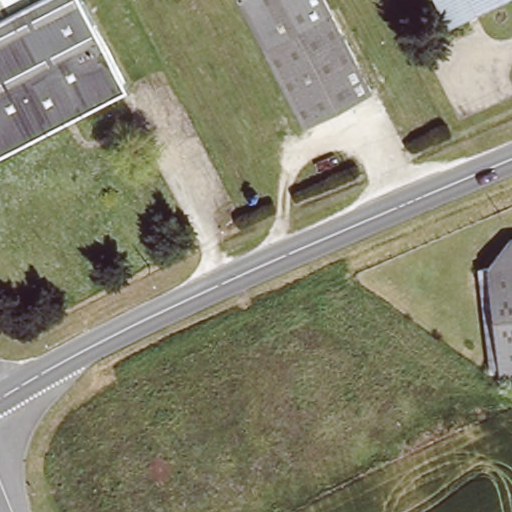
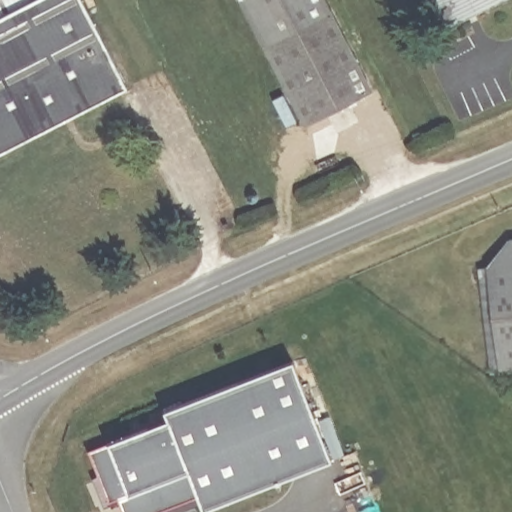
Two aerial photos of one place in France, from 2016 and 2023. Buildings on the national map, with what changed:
unchanged [(0,151),(0,0),(83,0),(127,88),(0,151)]
unchanged [(329,4),(267,36),(249,0),(327,0),(329,4)]
unchanged [(455,23),(443,0),(502,0),(455,23)]
unchanged [(329,4),(370,88),(307,119),(267,36),(329,4)]
unchanged [(490,262),(500,262),(512,247),(512,369),(497,370),(490,262)]
new [(167,413),(297,363),(336,462),(209,512),(206,512),(200,500),(169,512),(124,512),(120,502),(110,505),(90,453),(170,422),(167,413)]

